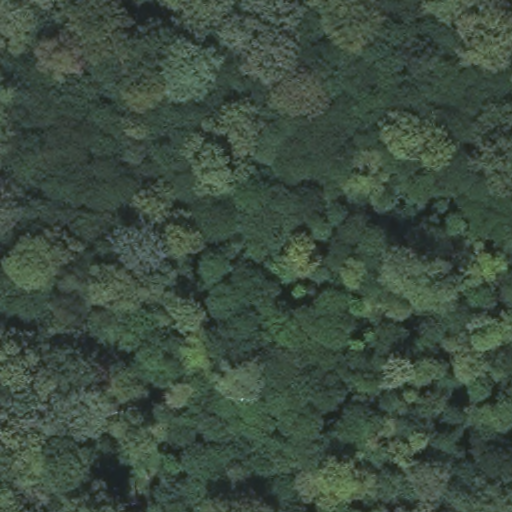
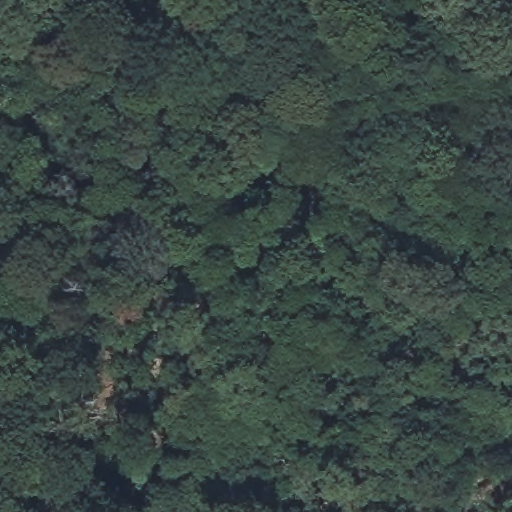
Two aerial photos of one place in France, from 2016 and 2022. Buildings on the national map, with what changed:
unchanged [(216,383),(221,413),(196,417),(191,387),(216,383)]

